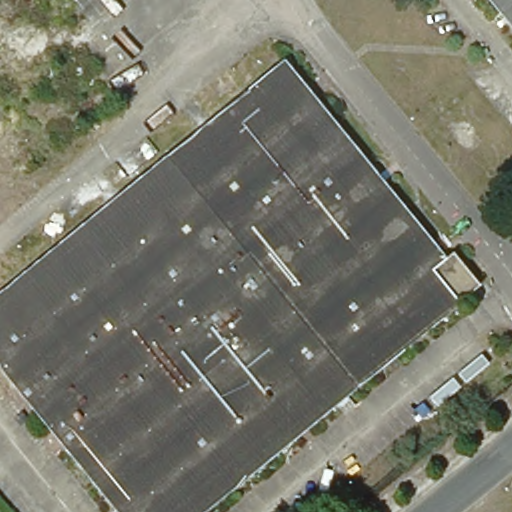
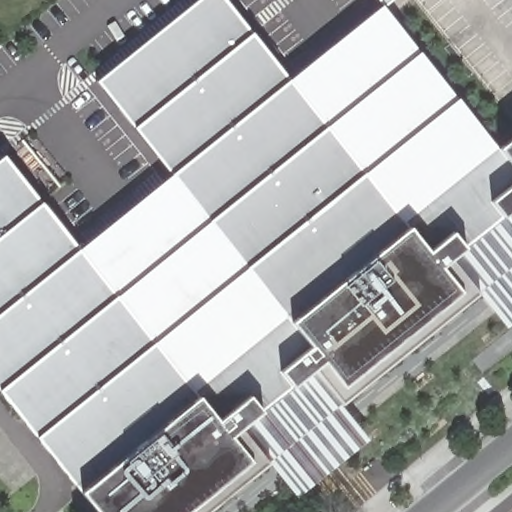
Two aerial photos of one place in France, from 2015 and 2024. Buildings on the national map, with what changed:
new [(96,81),(197,0),(226,0),(285,76),(377,2),(384,8),(501,152),(409,227),(291,322),(169,171),(127,119),(96,81)]
new [(376,0),(394,0),(384,8),(377,2),(376,0)]
new [(512,121),(474,74),(469,78),(444,48),(450,44),(415,0),(512,0),(512,121)]
demolished [(512,30),(487,0),(512,0),(512,30)]
demolished [(444,259),(452,252),(478,284),(458,301),(460,303),(202,512),(118,512),(0,366),(0,294),(284,63),(444,259)]
new [(512,141),(512,166),(501,152),(512,141)]
new [(512,166),(512,186),(490,203),(502,218),(512,210),(512,329),(511,330),(482,295),(453,258),(473,242),(461,227),(429,252),(409,227),(501,152),(512,166)]
new [(4,155),(77,247),(169,171),(291,322),(199,396),(80,492),(0,392),(0,159),(4,155)]
new [(512,210),(502,218),(490,203),(512,186),(512,210)]
new [(311,347),(291,322),(409,227),(429,252),(461,227),(473,242),(453,258),(441,267),(461,292),(343,387),(323,362),(312,372),(292,388),(280,373),(311,347)]
new [(323,362),(343,387),(461,292),(441,267),(453,258),(482,295),(342,408),(312,372),(323,362)]
new [(291,322),(311,347),(280,373),(292,388),(312,372),(342,408),(370,443),(301,500),(272,464),(243,427),(263,411),(251,396),(219,422),(199,396),(291,322)]
new [(219,422),(251,396),(263,411),(243,427),(231,437),(251,462),(189,512),(97,512),(80,492),(199,396),(219,422)]
new [(231,437),(243,427),(272,464),(214,512),(189,512),(251,462),(231,437)]

